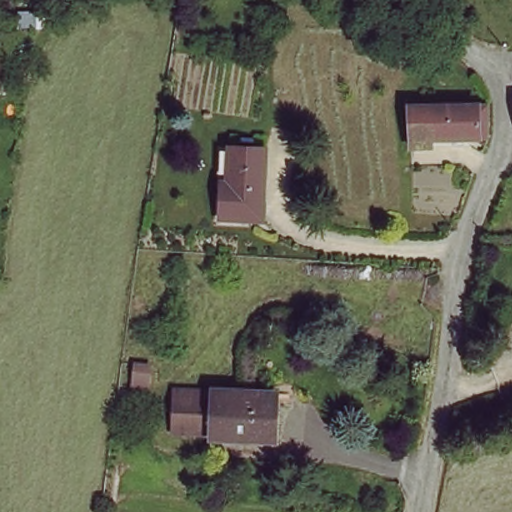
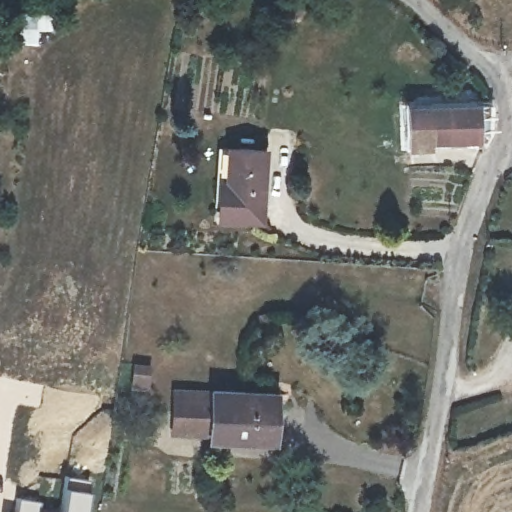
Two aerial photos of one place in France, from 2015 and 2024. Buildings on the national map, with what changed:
unchanged [(409,148),(408,107),(408,106),(414,106),(414,113),(454,111),(490,110),(490,141),(489,144),(409,148)]
unchanged [(267,154),(263,223),(221,222),(225,152),(267,154)]
unchanged [(132,385),(134,362),(149,363),(147,386),(132,385)]
unchanged [(276,395),(274,442),(212,439),(212,437),(173,435),(175,392),(211,394),(212,391),(276,395)]
new [(64,476),(90,480),(86,512),(59,512),(64,476)]
new [(2,510),(13,512),(15,498),(37,501),(36,512),(2,512),(2,510)]

